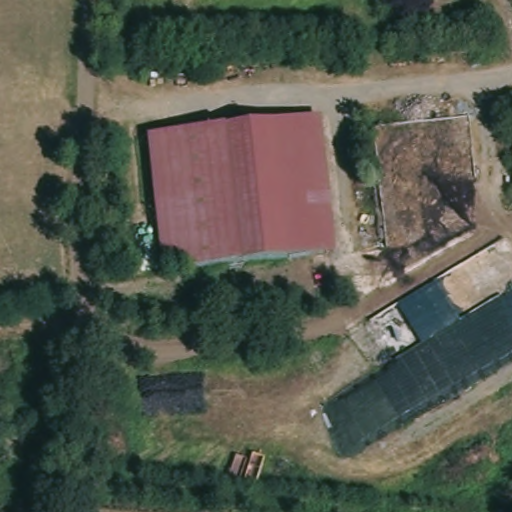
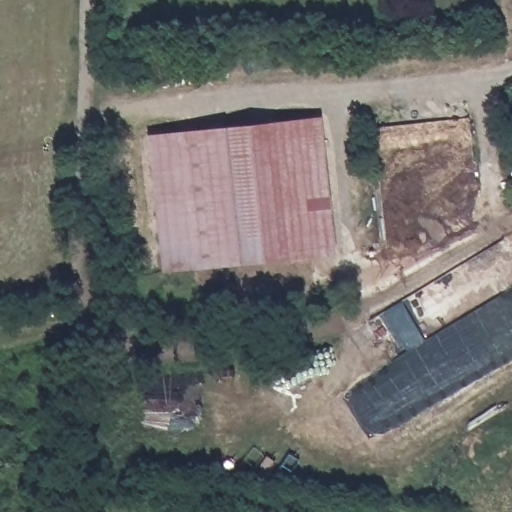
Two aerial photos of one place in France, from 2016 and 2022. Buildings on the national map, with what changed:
unchanged [(512,100),(512,160),(509,100),(512,100)]
unchanged [(313,260),(155,277),(141,140),(300,123),(313,260)]

